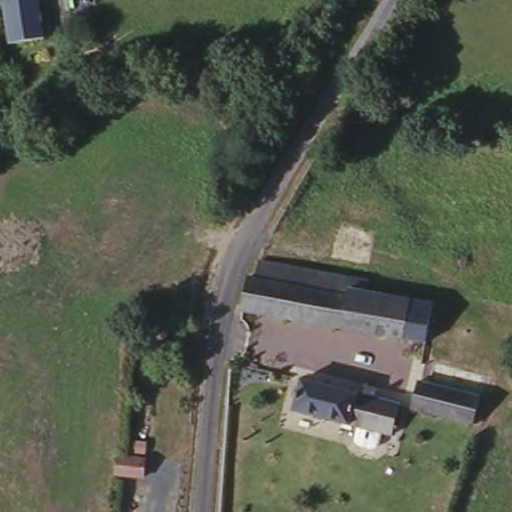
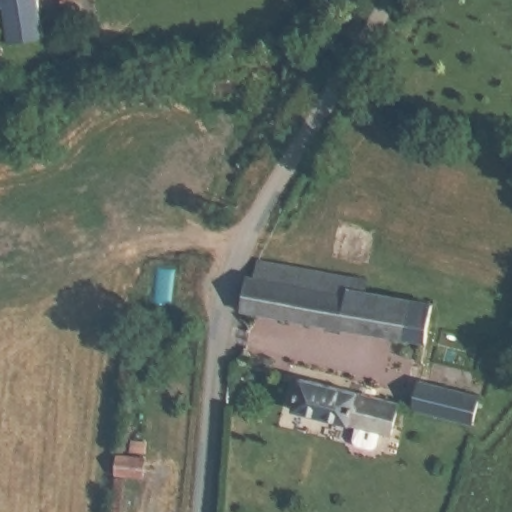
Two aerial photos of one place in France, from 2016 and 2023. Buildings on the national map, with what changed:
unchanged [(37,0),(42,34),(9,39),(2,0),(37,0)]
unchanged [(254,277),(261,265),(368,287),(367,298),(438,314),(433,348),(250,311),(254,277)]
unchanged [(355,395),(346,422),(346,425),(287,408),(296,376),(355,395)]
unchanged [(415,383),(477,396),(470,427),(410,407),(415,383)]
unchanged [(355,395),(397,409),(388,435),(385,433),(370,444),(359,441),(359,426),(346,422),(355,395)]

